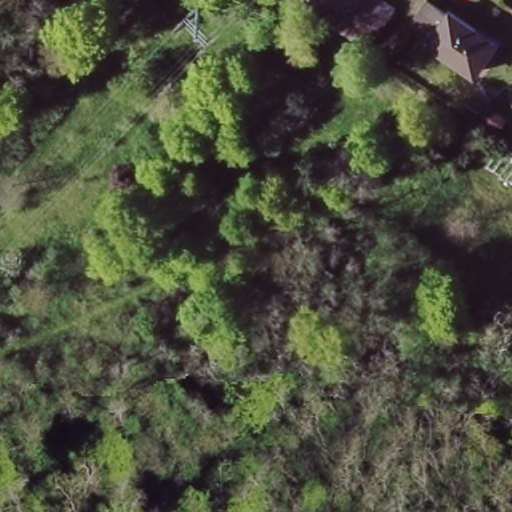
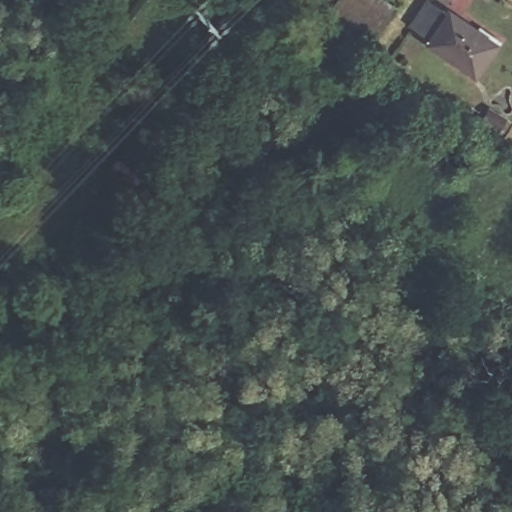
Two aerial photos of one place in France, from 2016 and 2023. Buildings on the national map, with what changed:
unchanged [(376,42),(331,11),(339,0),(399,0),(404,3),(376,42)]
unchanged [(437,0),(451,9),(454,5),(499,33),(479,65),(434,36),(436,34),(413,20),(426,0),(437,0)]

